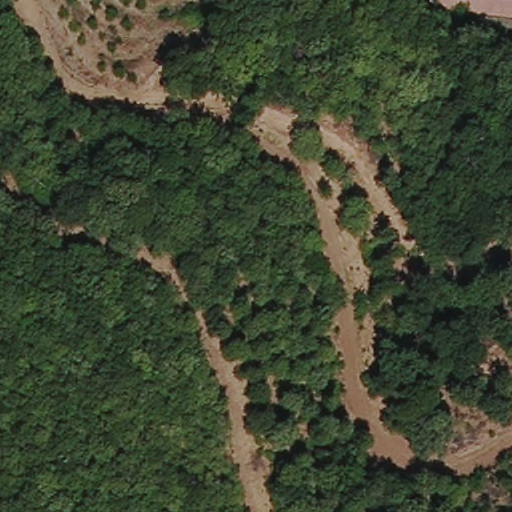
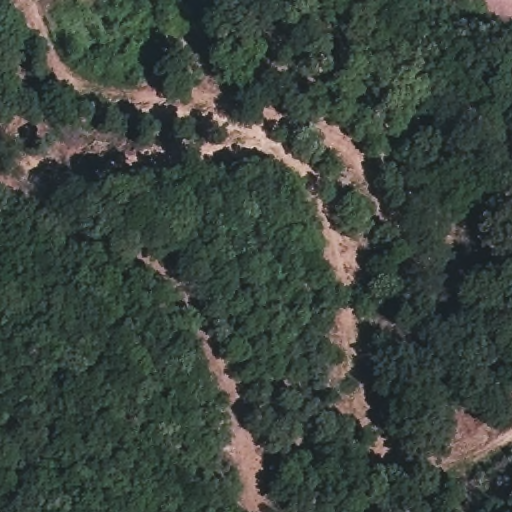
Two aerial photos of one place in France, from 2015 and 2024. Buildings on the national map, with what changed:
unchanged [(432,0),(512,0),(512,4),(434,13),(432,0)]

